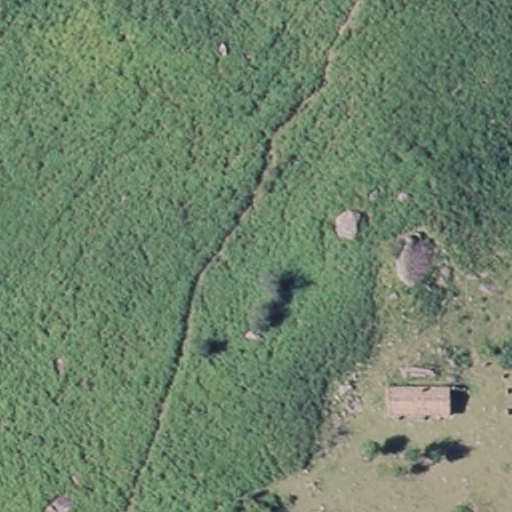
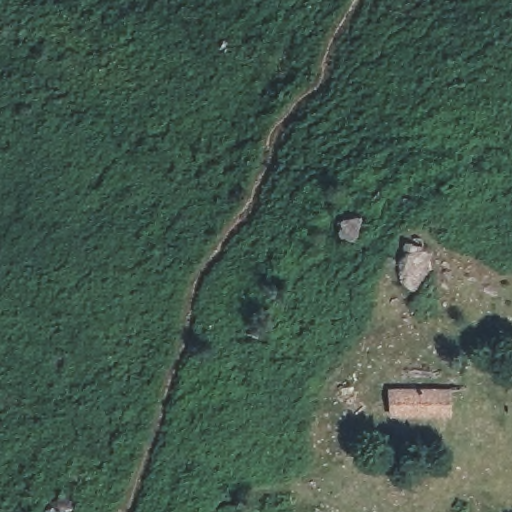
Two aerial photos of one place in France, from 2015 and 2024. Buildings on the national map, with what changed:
unchanged [(389,391),(442,392),(442,424),(389,424),(389,391)]

